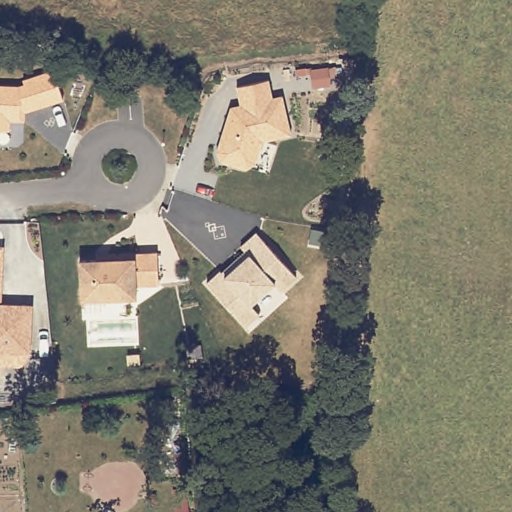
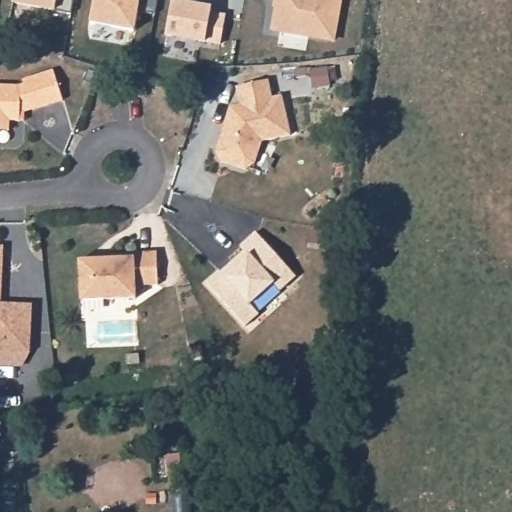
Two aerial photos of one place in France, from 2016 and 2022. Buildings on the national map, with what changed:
new [(13,0),(74,0),(71,14),(54,11),(54,10),(13,2),(13,0)]
new [(94,0),(159,0),(156,15),(138,12),(135,31),(90,23),(94,0)]
new [(278,1),(274,0),(340,0),(334,40),(273,29),(278,1)]
new [(173,2),(212,9),(211,14),(225,17),(220,43),(206,41),(205,42),(166,35),(173,2)]
unchanged [(26,84),(25,79),(55,72),(63,100),(31,108),(24,110),(23,119),(19,119),(9,118),(8,129),(8,131),(0,131),(0,86),(15,86),(26,84)]
unchanged [(232,108),(241,105),(237,87),(268,80),(273,98),(283,95),(292,135),(263,142),(256,164),(247,169),(222,161),(218,152),(232,108)]
unchanged [(259,235),(275,251),(299,279),(284,293),(278,286),(254,307),(263,316),(249,329),(210,286),(224,273),(225,275),(248,254),(244,249),(259,235)]
unchanged [(1,303),(0,303),(0,244),(5,244),(1,303)]
unchanged [(98,255),(110,255),(159,252),(160,284),(138,286),(139,298),(83,301),(80,261),(98,260),(98,255)]
unchanged [(28,350),(0,349),(0,303),(29,305),(28,350)]

